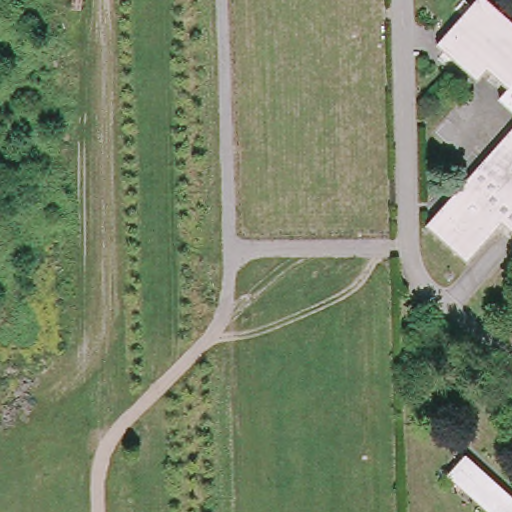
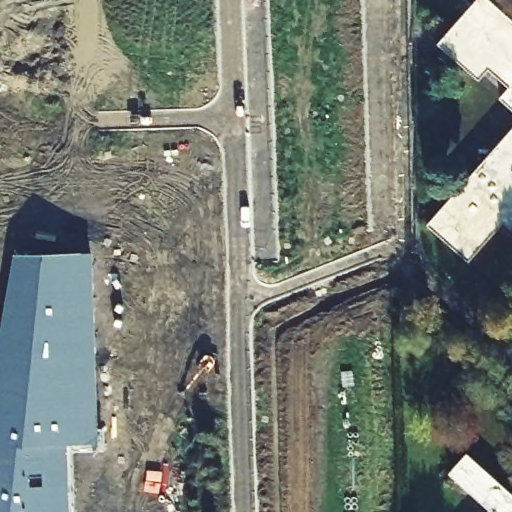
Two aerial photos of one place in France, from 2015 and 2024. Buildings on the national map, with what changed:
unchanged [(474,66),(434,31),(460,0),(499,0),(512,11),(512,80),(484,55),(474,66)]
unchanged [(512,91),(512,99),(508,95),(512,91)]
unchanged [(433,225),(512,134),(512,219),(510,218),(473,260),(433,225)]
new [(14,253),(95,253),(102,445),(70,446),(72,512),(0,512),(0,334),(14,253)]
unchanged [(512,512),(498,512),(454,472),(472,454),(512,490),(512,512)]

